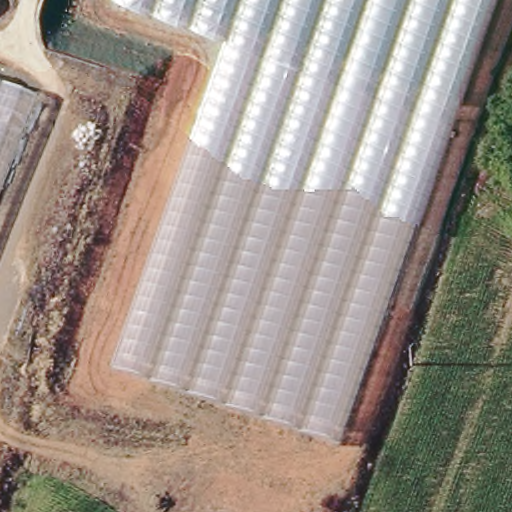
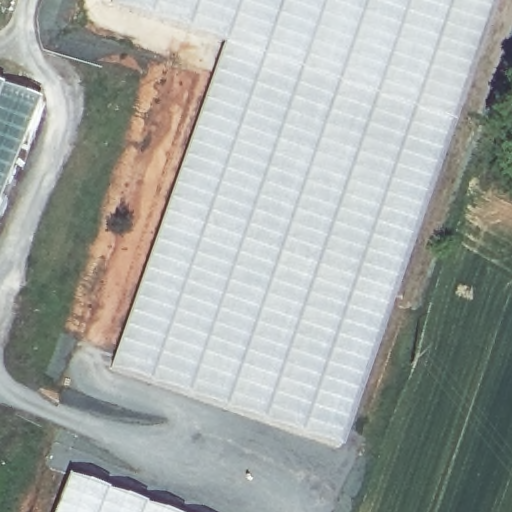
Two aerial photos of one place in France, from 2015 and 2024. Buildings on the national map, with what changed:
unchanged [(110,1),(110,0),(497,0),(342,447),(112,367),(223,42),(110,1)]
unchanged [(37,97),(0,192),(0,82),(37,97)]
new [(68,473),(168,512),(53,512),(68,473)]

